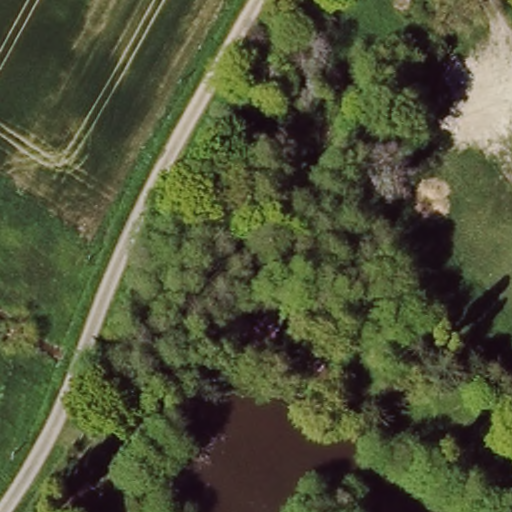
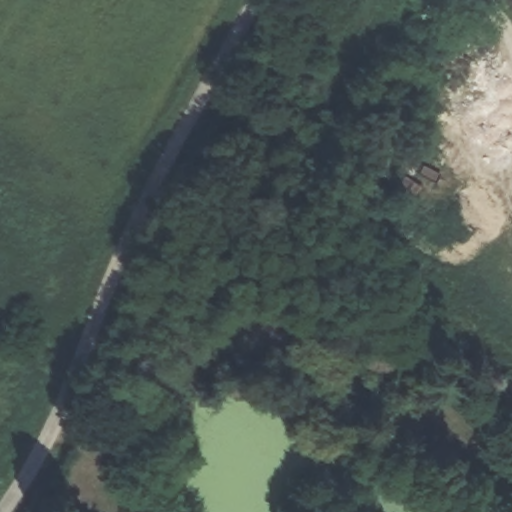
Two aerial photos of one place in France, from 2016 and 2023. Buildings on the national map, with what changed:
unchanged [(288,313),(268,357),(243,345),(262,298),(288,313)]

